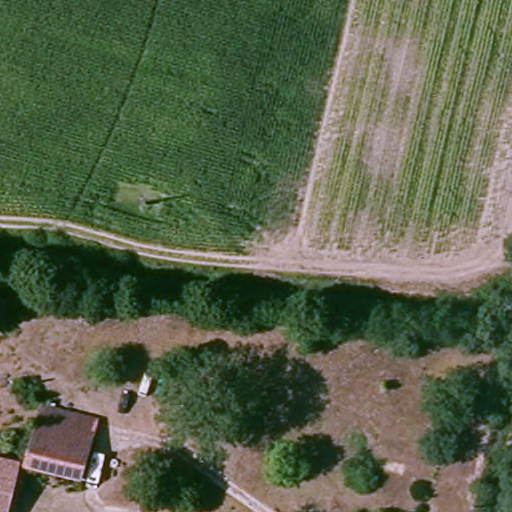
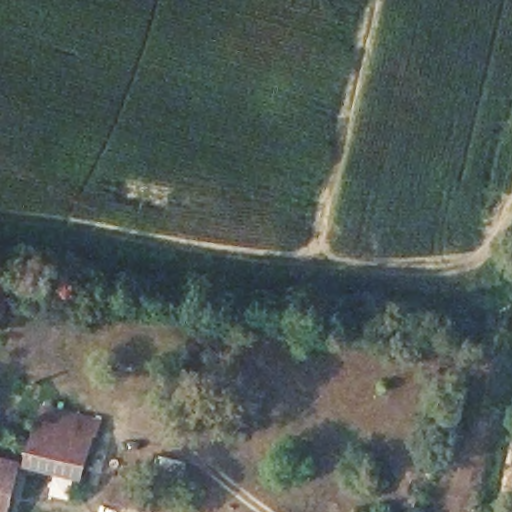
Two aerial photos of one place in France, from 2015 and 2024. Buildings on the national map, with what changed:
unchanged [(80,408),(72,468),(23,460),(30,419),(53,422),(55,403),(80,408)]
unchanged [(0,512),(0,454),(12,455),(12,512),(0,512)]

